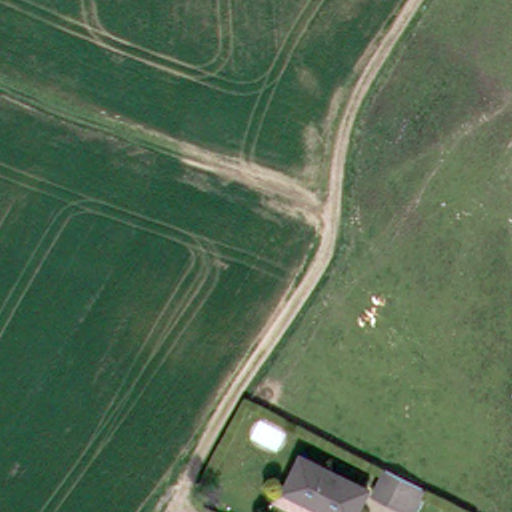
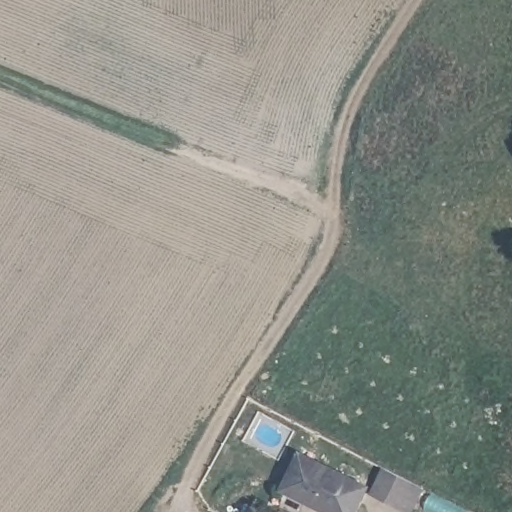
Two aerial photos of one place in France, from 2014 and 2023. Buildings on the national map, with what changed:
unchanged [(365,512),(327,512),(291,496),(307,459),(374,491),(365,512)]
unchanged [(420,511),(385,494),(394,473),(425,487),(435,492),(425,512),(424,512),(420,511)]

